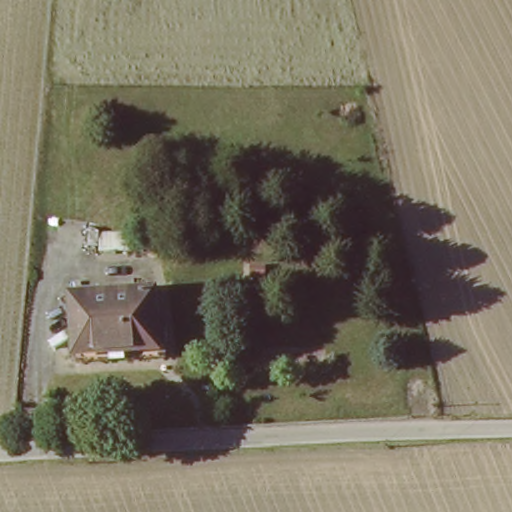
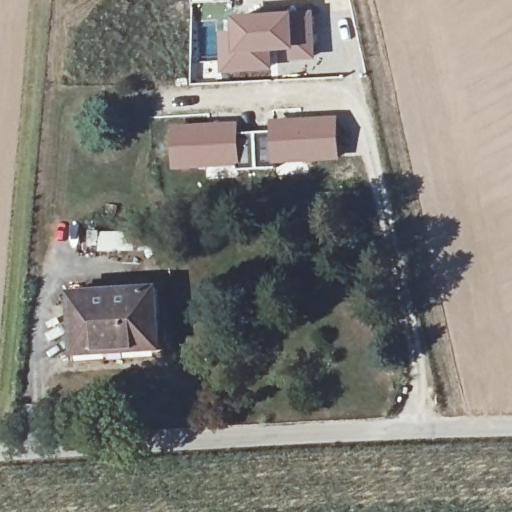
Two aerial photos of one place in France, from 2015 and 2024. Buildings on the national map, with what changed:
new [(294,12),(312,10),(317,60),(292,62),(291,51),(272,52),(274,70),(222,75),(220,33),(233,32),(232,17),(294,12)]
new [(237,125),(238,134),(275,132),(274,126),(273,123),(336,120),(337,157),(277,160),(277,169),(240,171),(239,163),(177,167),(175,129),(237,125)]
new [(90,246),(89,233),(160,231),(160,251),(100,252),(100,246),(90,246)]
unchanged [(157,346),(72,351),(68,295),(153,289),(155,322),(157,346)]
unchanged [(162,321),(162,358),(73,363),(72,351),(157,346),(155,322),(162,321)]

